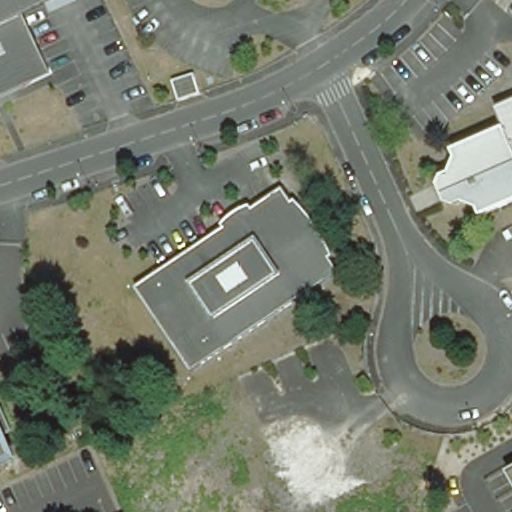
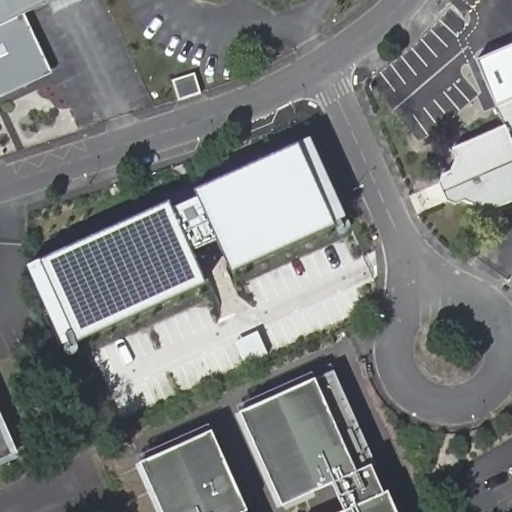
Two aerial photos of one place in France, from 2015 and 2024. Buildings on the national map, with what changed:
unchanged [(35,45),(39,52),(39,53),(39,54),(39,55),(40,55),(40,56),(40,57),(40,58),(40,59),(40,60),(40,61),(40,62),(40,63),(40,64),(40,65),(40,66),(40,67),(40,68),(40,69),(40,70),(39,71),(39,72),(39,73),(39,74),(38,74),(38,75),(37,75),(37,76),(37,77),(36,77),(36,78),(36,79),(35,79),(35,80),(34,81),(33,82),(32,82),(32,84),(31,84),(31,85),(30,85),(30,86),(29,86),(28,87),(27,87),(27,88),(26,88),(26,89),(25,89),(25,90),(24,90),(23,90),(22,90),(21,90),(21,91),(20,91),(19,91),(18,91),(18,92),(17,92),(16,92),(15,92),(14,92),(13,92),(12,92),(11,92),(10,92),(9,92),(8,92),(7,92),(6,92),(5,92),(5,91),(4,91),(3,91),(2,91),(1,91),(1,90),(0,90),(0,0),(65,0),(23,20),(29,32),(35,45)]
new [(512,95),(497,102),(494,104),(476,60),(512,44),(512,95)]
unchanged [(192,72),(199,91),(178,99),(171,79),(192,72)]
unchanged [(512,196),(480,210),(477,202),(463,197),(455,201),(449,198),(440,181),(445,167),(453,164),(456,153),(452,144),(506,120),(497,102),(512,95),(512,196)]
new [(317,143),(355,221),(240,274),(224,241),(197,251),(215,288),(70,351),(32,266),(317,143)]
demolished [(291,206),(305,227),(318,237),(341,270),(193,369),(137,285),(283,185),(295,203),(291,206)]
new [(313,374),(316,380),(335,372),(373,460),(355,468),(357,473),(372,466),(385,493),(389,492),(398,512),(343,512),(346,510),(335,484),(284,507),(242,413),(239,407),(313,374)]
unchanged [(18,455),(0,464),(0,418),(18,455)]
new [(138,457),(210,426),(212,431),(248,511),(246,512),(163,512),(140,463),(138,457)]
demolished [(323,460),(335,465),(350,460),(361,487),(304,512),(297,512),(268,452),(311,432),(323,460)]
unchanged [(512,482),(506,472),(512,469),(512,482)]

